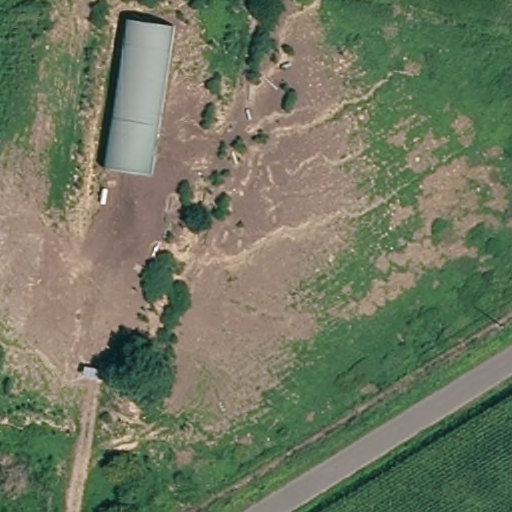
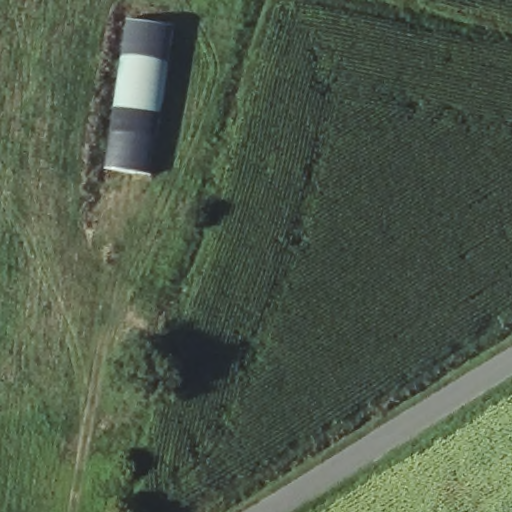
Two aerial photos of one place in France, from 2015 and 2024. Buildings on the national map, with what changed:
unchanged [(151,171),(105,161),(129,17),(176,25),(151,171)]

